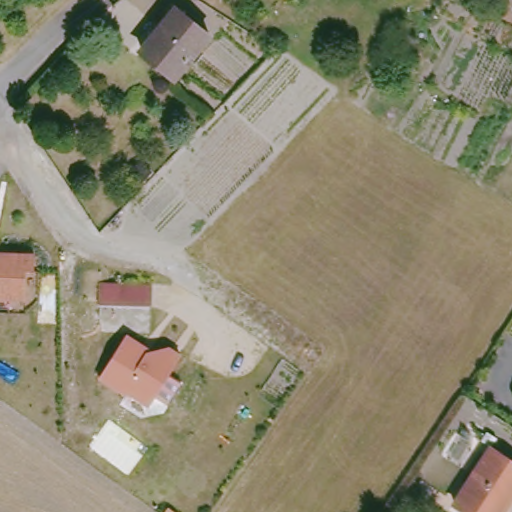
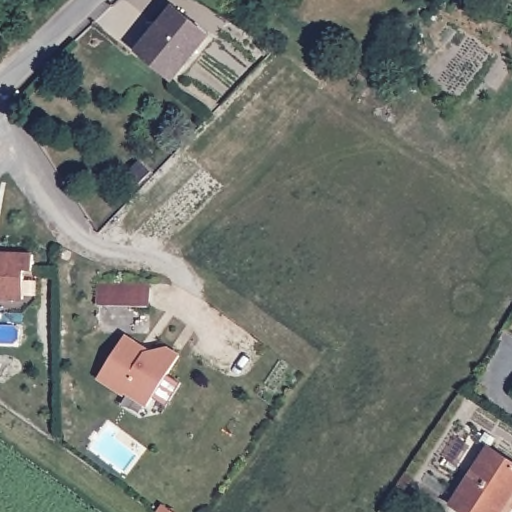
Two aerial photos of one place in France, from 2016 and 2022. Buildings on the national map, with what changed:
unchanged [(201,33),(168,74),(133,47),(167,6),(201,33)]
unchanged [(33,270),(25,270),(25,299),(0,299),(0,255),(33,254),(33,270)]
unchanged [(98,280),(151,281),(151,300),(97,301),(98,280)]
unchanged [(125,332),(148,347),(168,342),(182,350),(146,404),(128,392),(125,395),(98,377),(125,332)]
unchanged [(481,452),(512,472),(512,501),(505,512),(475,512),(453,497),(481,452)]

